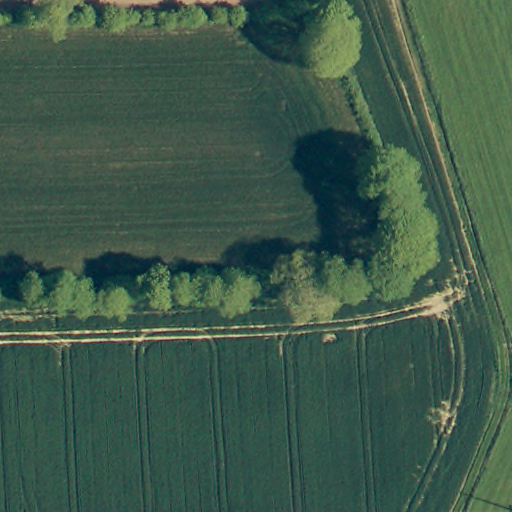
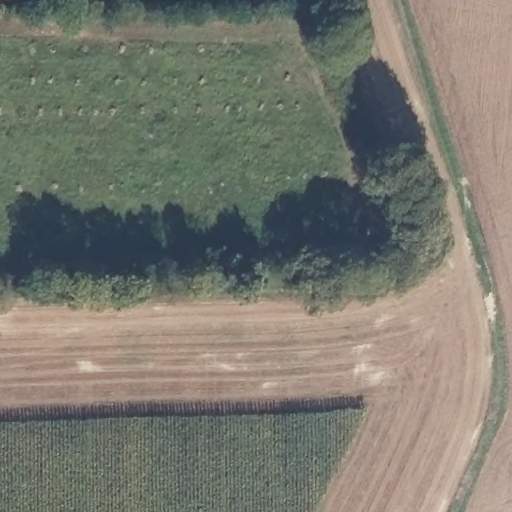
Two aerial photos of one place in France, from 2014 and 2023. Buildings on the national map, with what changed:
[]

